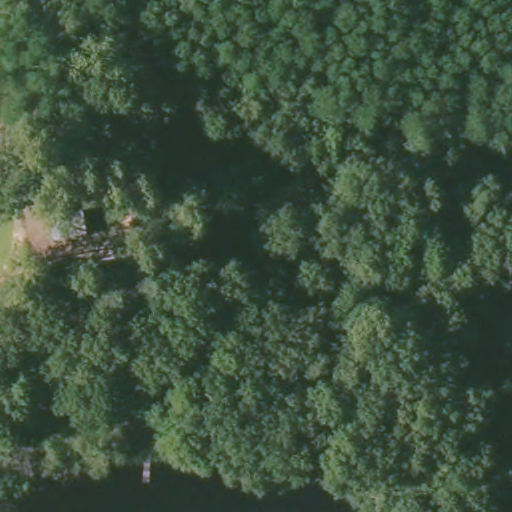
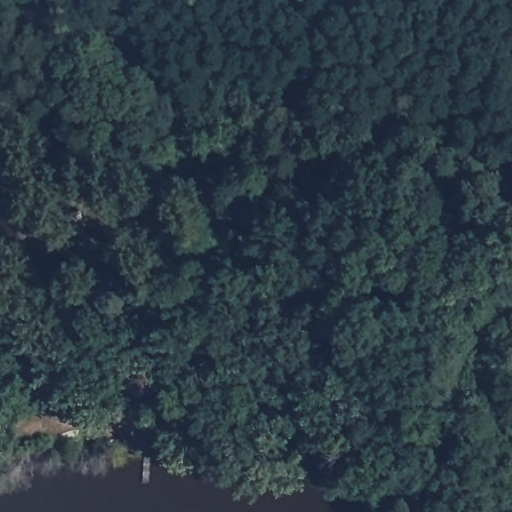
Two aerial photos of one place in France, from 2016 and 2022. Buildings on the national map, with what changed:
unchanged [(49,214),(83,207),(89,234),(55,242),(49,214)]

